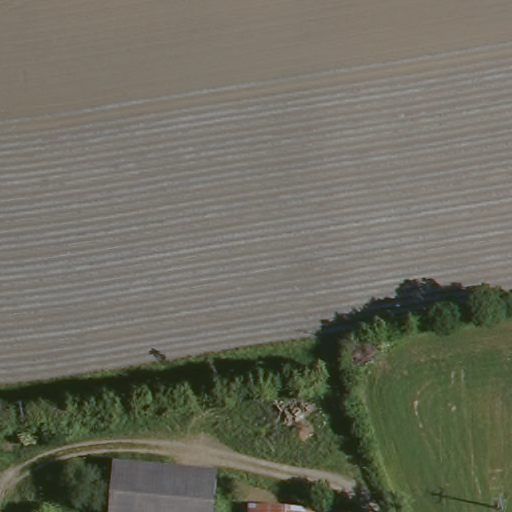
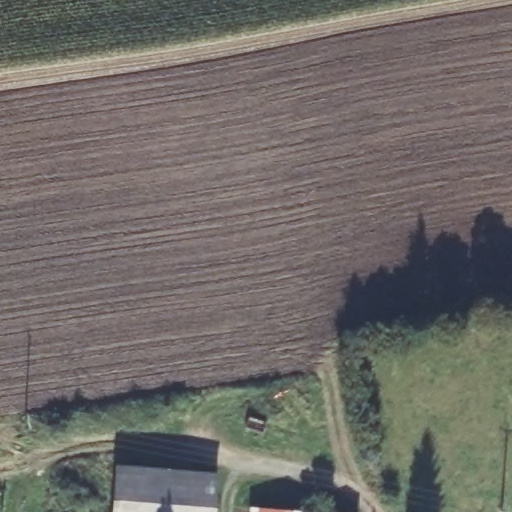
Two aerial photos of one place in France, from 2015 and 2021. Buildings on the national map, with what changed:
unchanged [(219,484),(217,509),(217,512),(120,512),(124,474),(219,484)]

